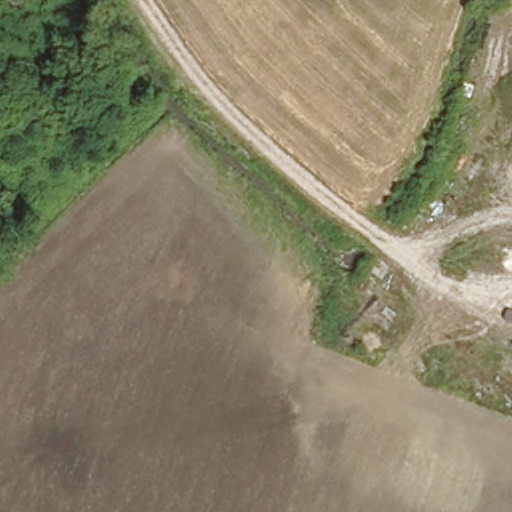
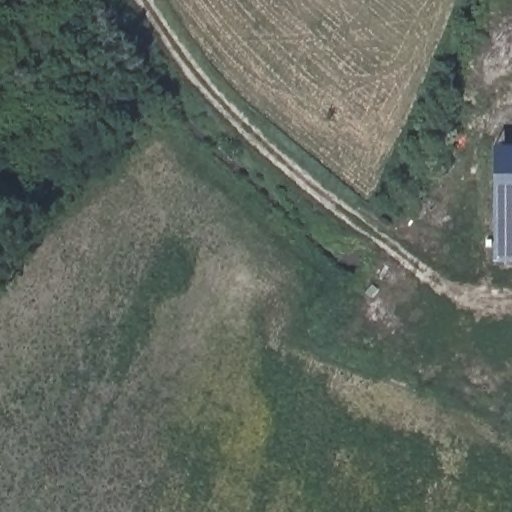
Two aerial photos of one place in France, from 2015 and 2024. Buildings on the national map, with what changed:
new [(497,150),(512,150),(512,260),(496,261),(497,150)]

